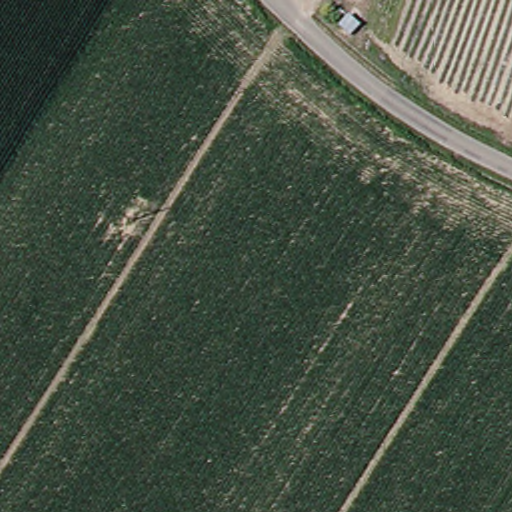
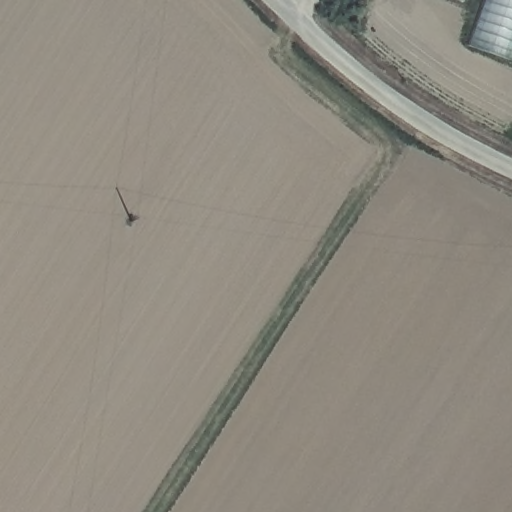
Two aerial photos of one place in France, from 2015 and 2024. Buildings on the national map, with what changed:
new [(460,0),(463,0),(463,1),(460,0)]
new [(512,51),(509,60),(467,45),(482,0),(512,0),(512,51)]

